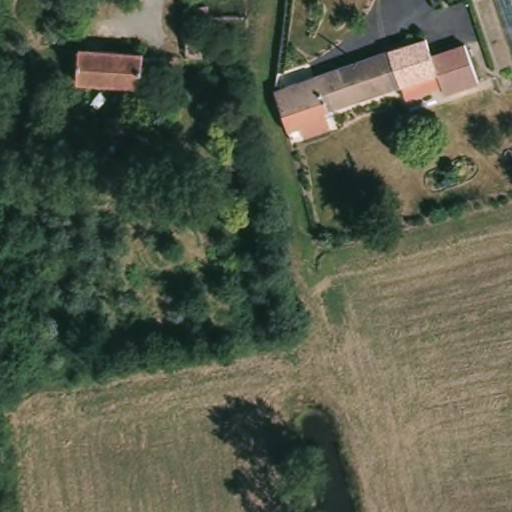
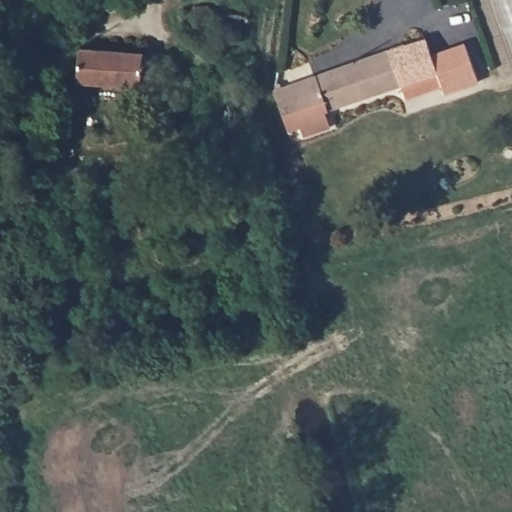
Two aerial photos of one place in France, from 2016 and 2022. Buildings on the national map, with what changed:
unchanged [(433,48),(466,35),(482,76),(448,88),(445,81),(414,93),(408,79),(331,109),(337,126),(309,136),(303,121),(290,125),(277,89),(426,32),(433,48)]
unchanged [(153,63),(151,85),(133,83),(132,85),(106,83),(69,80),(72,43),(109,46),(136,48),(136,51),(154,52),(153,63)]

